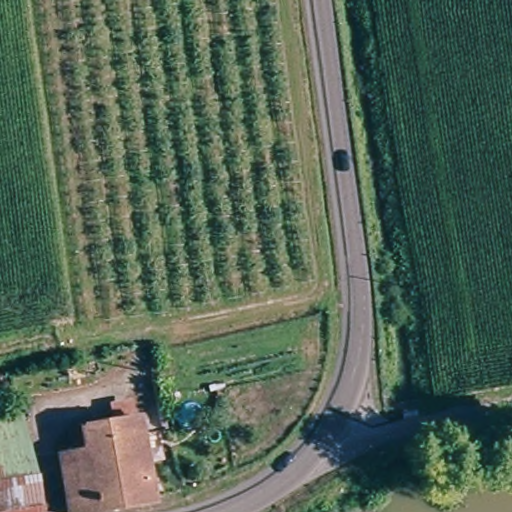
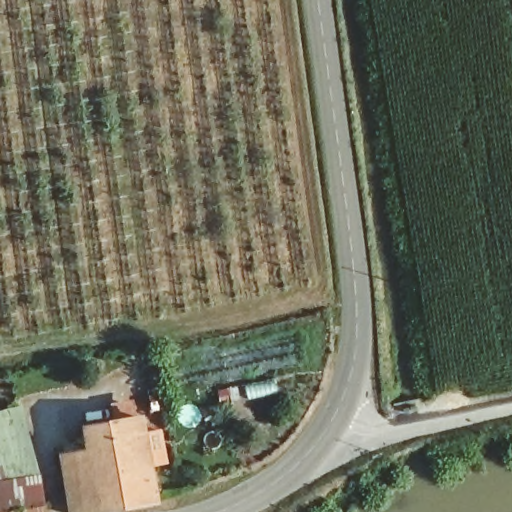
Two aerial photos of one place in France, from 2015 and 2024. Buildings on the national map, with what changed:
unchanged [(74,512),(64,459),(81,455),(77,433),(121,425),(119,411),(136,408),(138,422),(145,421),(161,501),(95,512),(74,512)]
unchanged [(0,452),(0,442),(24,434),(35,474),(41,473),(48,512),(0,512),(0,476),(5,475),(0,452)]

